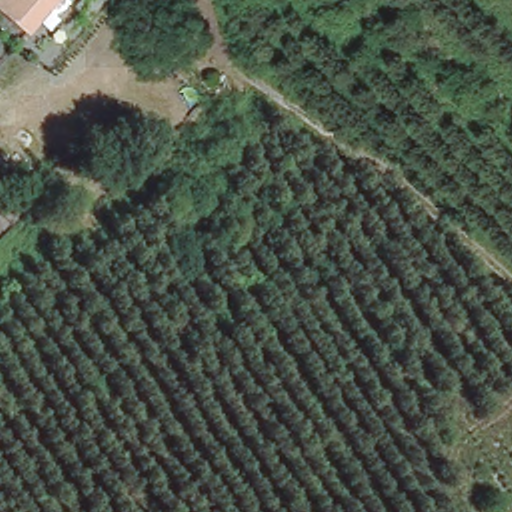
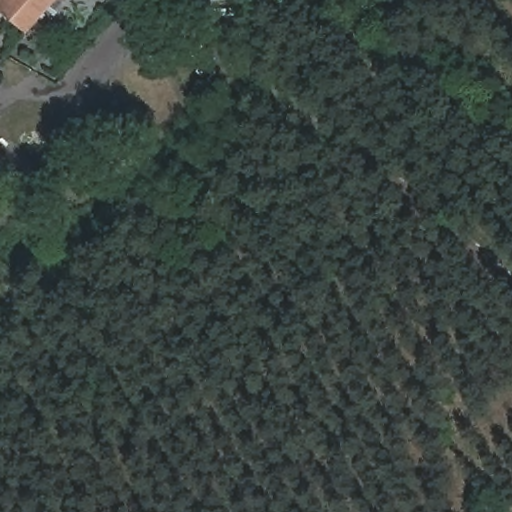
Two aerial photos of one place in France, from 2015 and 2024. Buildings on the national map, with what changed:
unchanged [(0,8),(0,0),(51,0),(24,30),(0,8)]
unchanged [(11,217),(1,226),(0,224),(0,200),(11,217)]

